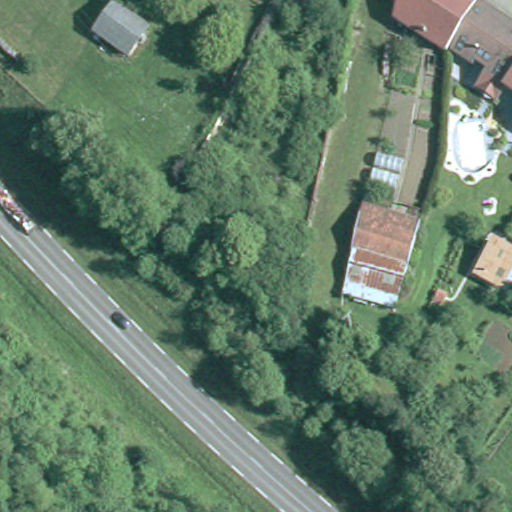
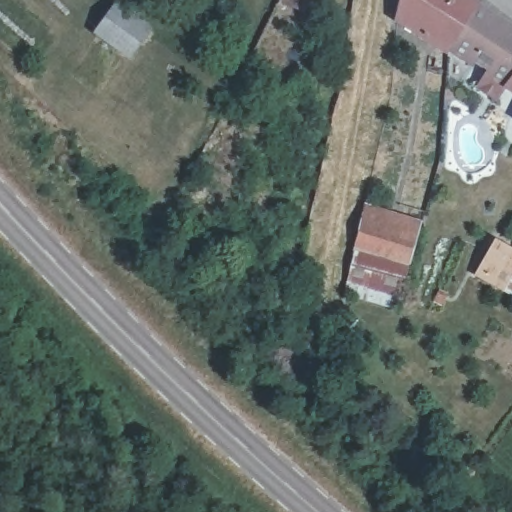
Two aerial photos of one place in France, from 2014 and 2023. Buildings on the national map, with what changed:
unchanged [(395,0),(475,0),(448,41),(447,43),(446,46),(447,48),(400,17),(403,8),(395,5),(395,0)]
unchanged [(475,0),(483,0),(512,17),(512,73),(508,79),(448,41),(475,0)]
unchanged [(103,32),(123,5),(145,22),(155,29),(136,55),(126,48),(103,32)]
unchanged [(512,73),(512,82),(508,79),(512,73)]
unchanged [(400,313),(347,299),(349,286),(370,205),(425,224),(398,300),(402,301),(400,313)]
unchanged [(476,279),(495,246),(512,256),(512,294),(510,298),(476,279)]

